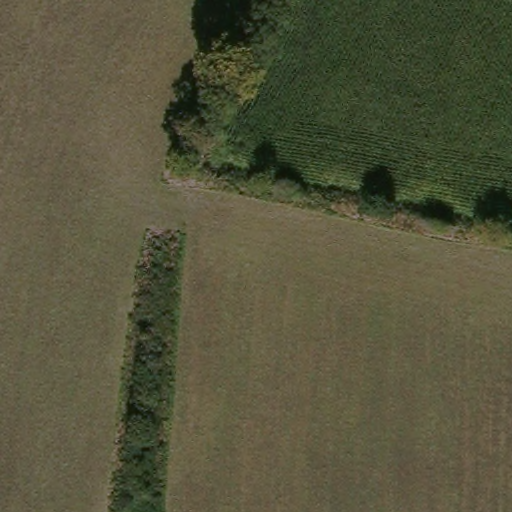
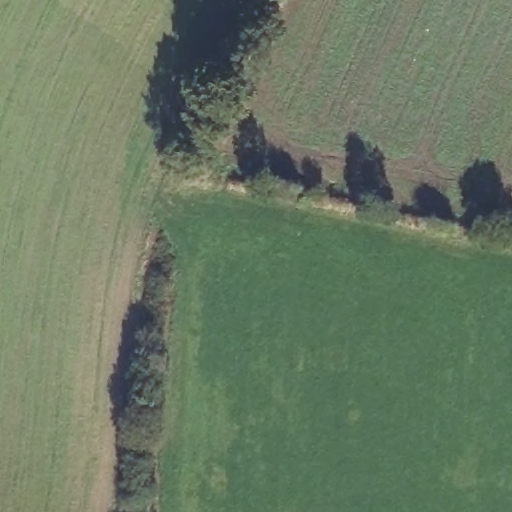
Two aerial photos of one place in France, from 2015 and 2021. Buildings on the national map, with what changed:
[]

